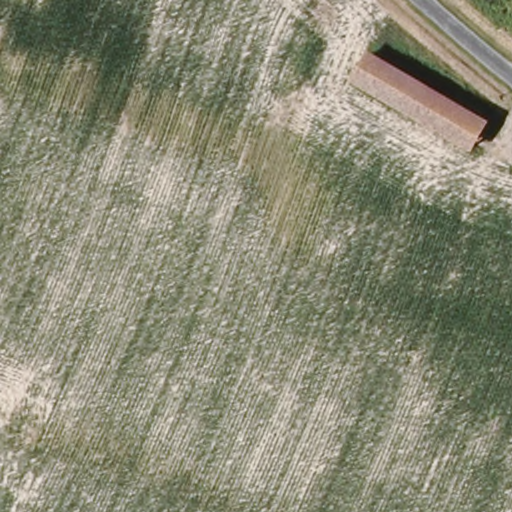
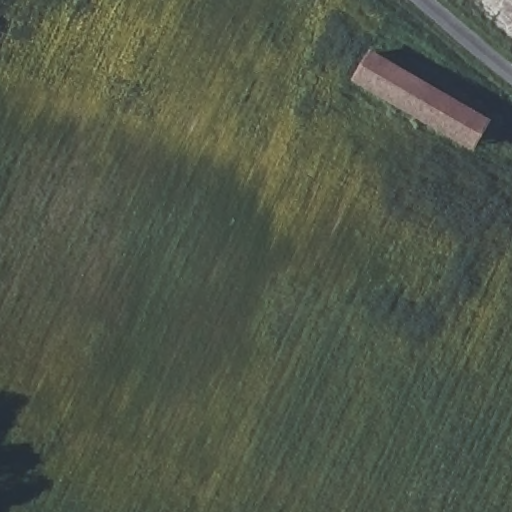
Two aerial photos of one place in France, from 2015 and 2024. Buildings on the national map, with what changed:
unchanged [(354,84),(371,54),(492,123),(475,154),(354,84)]

